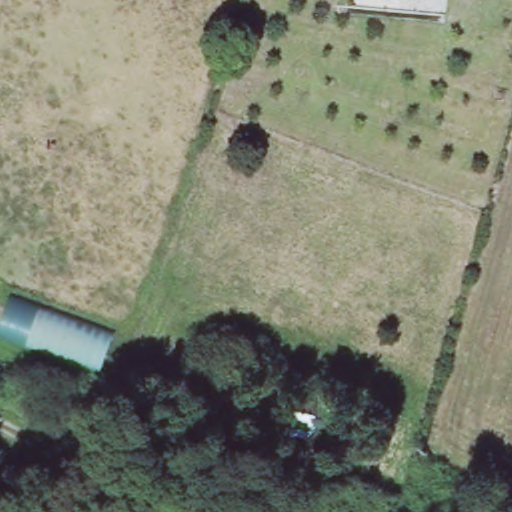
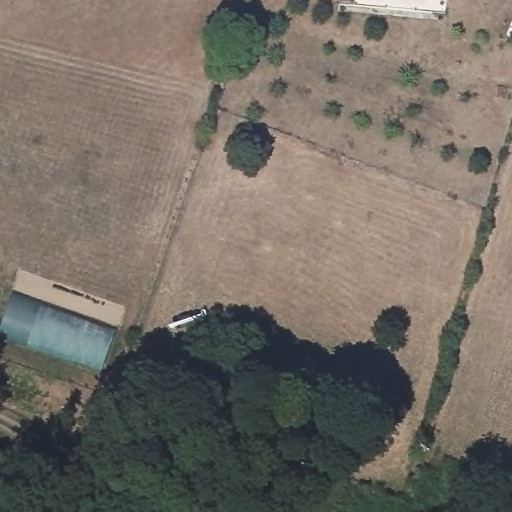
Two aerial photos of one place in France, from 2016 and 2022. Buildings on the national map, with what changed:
unchanged [(102,367),(0,333),(0,330),(12,293),(115,331),(102,367)]

